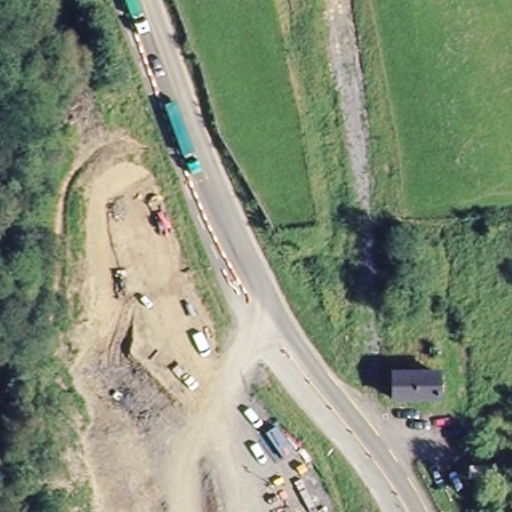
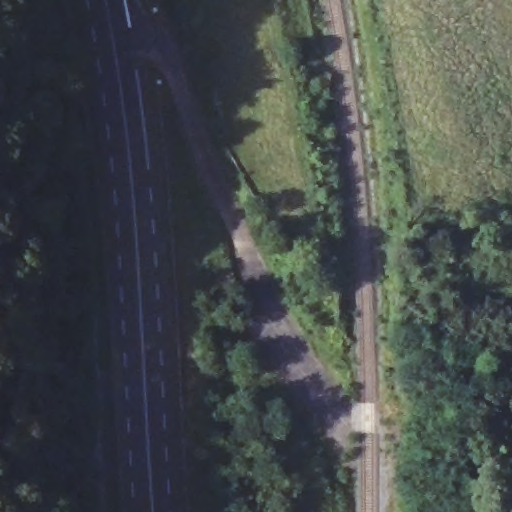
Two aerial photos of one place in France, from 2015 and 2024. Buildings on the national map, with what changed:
demolished [(438,369),(439,399),(394,399),(393,370),(438,369)]

